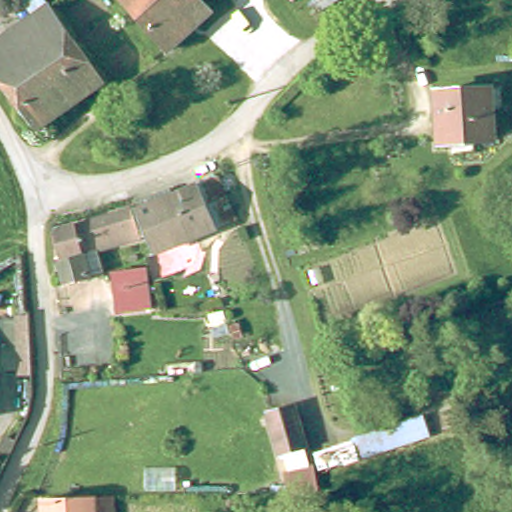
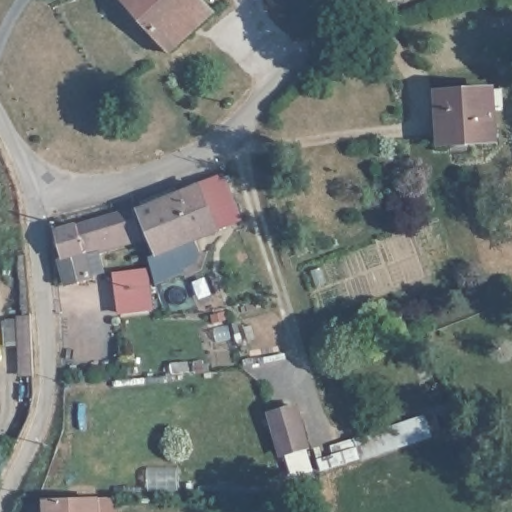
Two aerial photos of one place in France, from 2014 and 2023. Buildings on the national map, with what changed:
unchanged [(171,44),(132,0),(199,0),(208,10),(171,44)]
demolished [(46,133),(0,67),(0,51),(54,9),(110,84),(46,133)]
unchanged [(498,140),(444,143),(442,94),(494,91),(498,140)]
unchanged [(217,173),(238,222),(221,230),(200,180),(217,173)]
unchanged [(203,237),(182,189),(200,180),(221,230),(203,237)]
unchanged [(158,191),(171,186),(173,192),(182,189),(203,237),(159,256),(138,208),(160,198),(158,191)]
unchanged [(69,284),(61,258),(65,257),(57,229),(133,204),(142,234),(101,246),(83,251),(91,278),(69,284)]
unchanged [(115,280),(151,279),(152,305),(116,305),(115,280)]
unchanged [(379,445),(350,454),(345,437),(412,415),(418,432),(379,445)]
unchanged [(296,455),(271,460),(263,423),(288,417),(296,455)]
unchanged [(341,441),(345,451),(333,454),(331,445),(341,441)]
unchanged [(288,491),(288,479),(301,479),(301,491),(288,491)]
unchanged [(47,492),(102,494),(103,512),(48,512),(47,492)]

